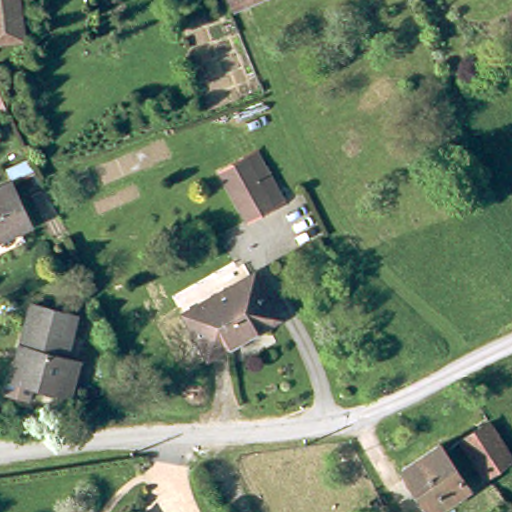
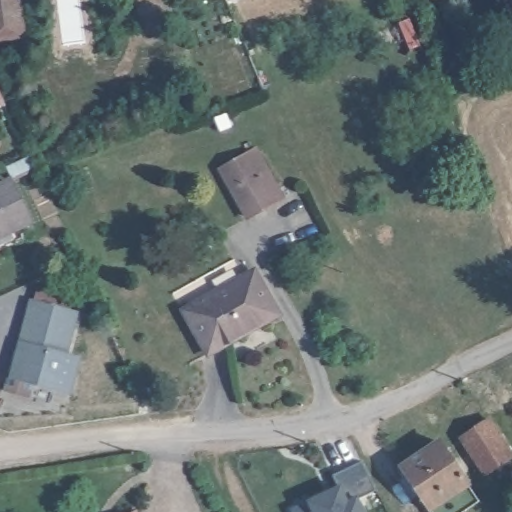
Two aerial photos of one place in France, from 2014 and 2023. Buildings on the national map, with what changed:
unchanged [(0,0),(17,0),(24,41),(0,44),(0,0)]
unchanged [(0,115),(0,112),(2,115),(0,115)]
unchanged [(257,149),(284,197),(275,202),(248,217),(222,169),(249,154),(257,149)]
unchanged [(0,236),(0,188),(11,182),(30,222),(0,236)]
unchanged [(279,310),(210,349),(185,306),(254,267),(279,310)]
unchanged [(65,392),(50,388),(9,377),(29,303),(71,314),(60,354),(74,359),(65,392)]
unchanged [(512,452),(512,456),(486,474),(462,438),(490,418),(512,452)]
unchanged [(470,490),(437,512),(428,512),(402,472),(440,447),(470,490)]
new [(377,491),(360,498),(366,512),(291,512),(290,510),(307,501),(342,485),(336,473),(362,461),(377,491)]

